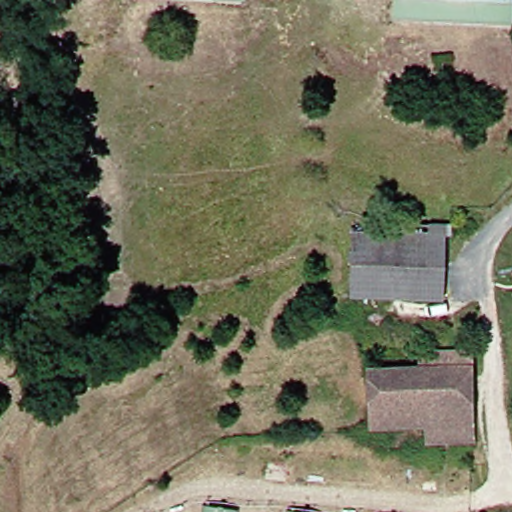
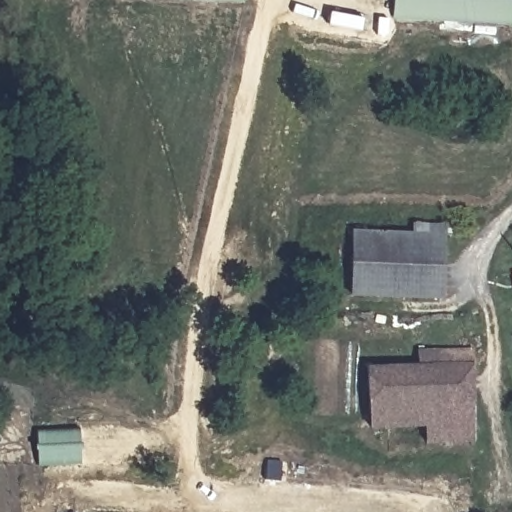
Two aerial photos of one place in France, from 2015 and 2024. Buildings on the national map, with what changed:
unchanged [(238,4),(181,0),(238,0),(238,4)]
unchanged [(386,0),(508,0),(508,25),(386,21),(386,0)]
unchanged [(342,295),(347,232),(410,237),(411,227),(448,231),(447,240),(437,240),(433,295),(433,303),(406,301),(342,295)]
unchanged [(512,340),(512,349),(511,341),(512,340)]
unchanged [(468,368),(438,368),(439,427),(442,427),(442,446),(424,446),(423,428),(364,429),(363,370),(413,369),(414,354),(468,353),(468,368)]
unchanged [(439,427),(438,368),(468,368),(469,426),(442,427),(439,427)]
new [(39,466),(37,431),(79,430),(80,465),(39,466)]
new [(235,510),(235,512),(205,512),(205,509),(235,510)]
new [(298,512),(290,512),(290,511),(298,512)]

